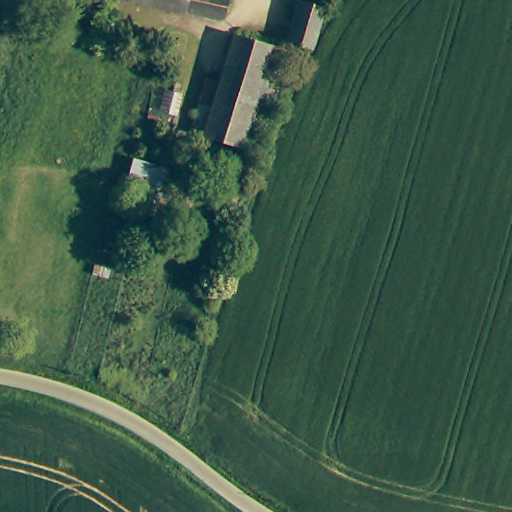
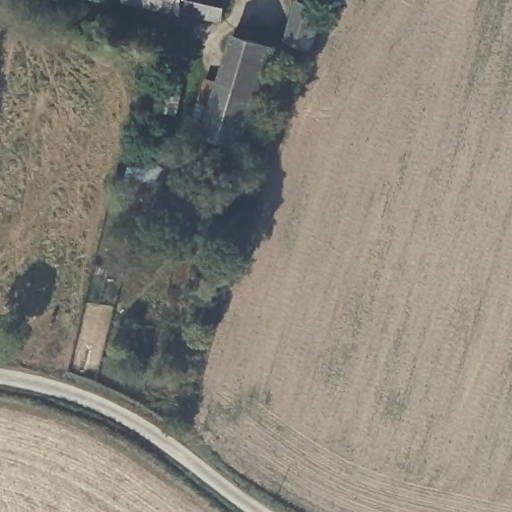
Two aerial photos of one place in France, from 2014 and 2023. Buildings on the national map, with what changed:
unchanged [(224,13),(215,17),(146,0),(227,0),(224,13)]
unchanged [(279,59),(281,51),(278,50),(280,45),(282,38),(280,37),(292,0),(311,0),(315,1),(301,43),(296,41),(293,49),(292,54),(290,62),(279,59)]
unchanged [(247,146),(195,131),(230,29),(280,45),(278,50),(247,146)]
unchanged [(180,95),(174,115),(157,110),(164,91),(180,95)]
unchanged [(160,202),(125,194),(131,155),(170,166),(160,202)]
unchanged [(242,186),(230,224),(212,218),(225,181),(242,186)]

